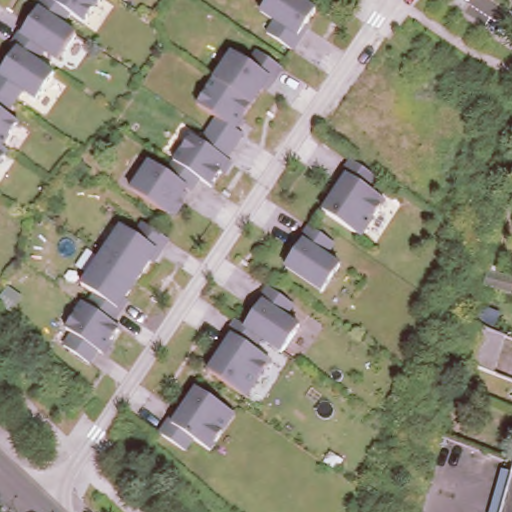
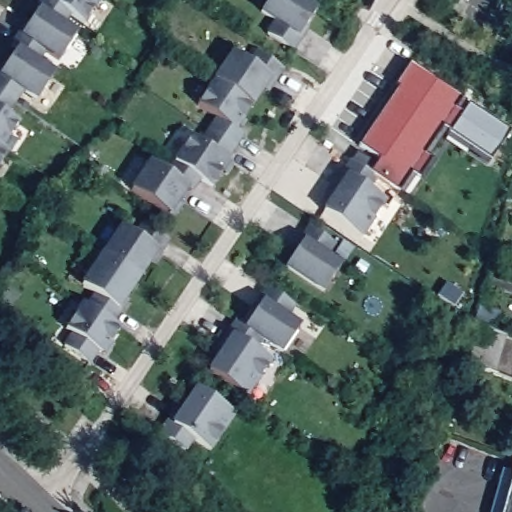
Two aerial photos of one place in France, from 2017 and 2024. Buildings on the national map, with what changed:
unchanged [(86,21),(71,14),(65,23),(78,30),(58,61),(46,54),(42,62),(57,70),(36,99),(21,92),(8,112),(21,120),(4,147),(8,150),(0,165),(0,72),(23,38),(19,36),(39,5),(44,8),(50,0),(100,0),(86,21)]
unchanged [(320,6),(299,36),(304,39),(296,49),(263,33),(269,21),(259,14),(271,0),(310,0),(320,6)]
unchanged [(286,68),(276,86),(271,81),(240,124),(248,132),(223,169),(228,171),(218,187),(204,179),(203,183),(191,177),(186,184),(192,188),(170,217),(128,188),(149,161),(162,169),(189,133),(197,138),(213,116),(196,105),(234,49),(247,59),(258,51),(286,68)]
new [(456,97),(449,106),(457,112),(444,129),(438,125),(420,151),(427,154),(414,175),(406,170),(396,187),(379,175),(356,161),(349,156),(355,149),(373,160),(376,155),(356,141),(398,82),(394,80),(406,65),(456,97)]
unchanged [(324,212),(338,191),(334,189),(356,161),(379,175),(370,186),(389,199),(364,236),(324,212)]
unchanged [(168,237),(119,310),(111,304),(104,317),(123,326),(109,352),(99,348),(89,362),(62,346),(72,330),(66,324),(80,302),(86,306),(93,292),(81,284),(123,227),(133,232),(145,224),(168,237)]
unchanged [(286,269),(311,230),(337,244),(329,256),(347,264),(324,295),(286,269)]
unchanged [(512,279),(512,281),(509,294),(481,286),(484,272),(512,279)]
unchanged [(221,352),(217,350),(238,318),(251,320),(270,292),(296,307),(289,316),(301,326),(286,352),(267,343),(263,353),(271,363),(248,398),(209,372),(221,352)]
unchanged [(470,328),(475,311),(496,318),(491,335),(504,339),(491,379),(459,367),(470,328)]
unchanged [(182,401),(188,403),(200,390),(238,412),(213,449),(193,438),(188,451),(161,431),(182,401)]
unchanged [(499,512),(512,465),(512,512),(499,512)]

